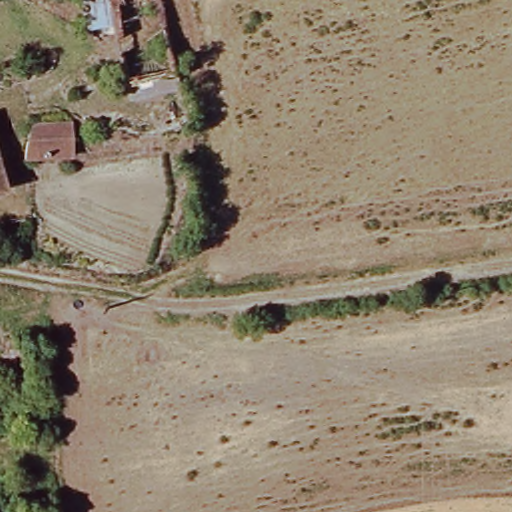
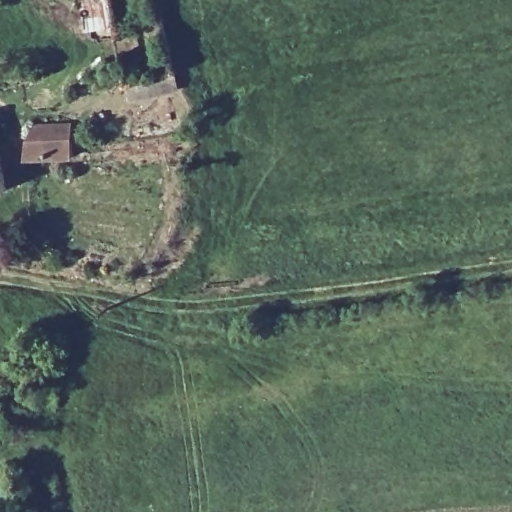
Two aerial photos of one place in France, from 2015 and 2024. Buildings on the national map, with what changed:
unchanged [(176,78),(127,87),(115,26),(80,33),(76,15),(111,9),(109,0),(160,0),(176,78)]
unchanged [(41,146),(44,115),(78,116),(75,147),(41,146)]
unchanged [(7,190),(0,193),(0,163),(0,165),(7,190)]

